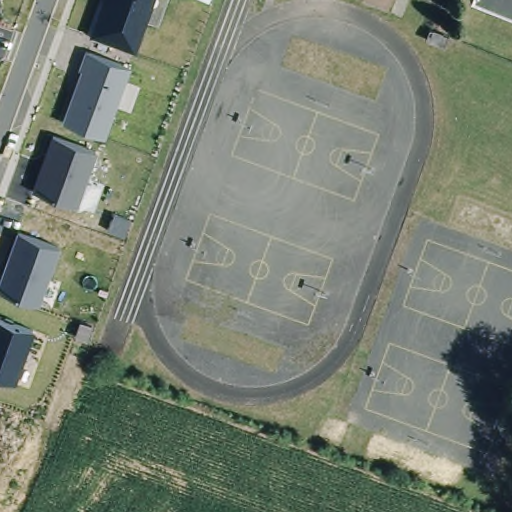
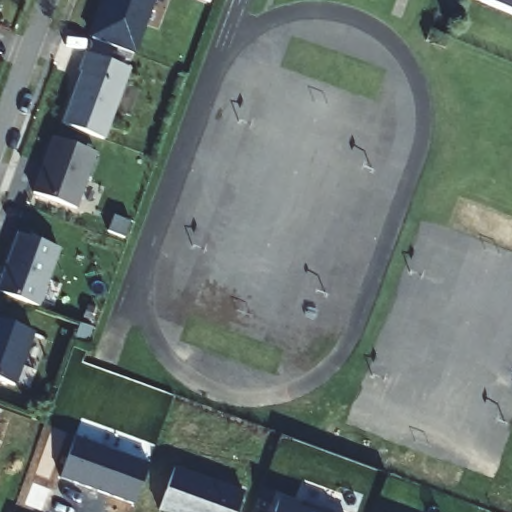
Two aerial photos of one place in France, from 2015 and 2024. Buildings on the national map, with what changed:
unchanged [(98,0),(149,0),(135,50),(86,31),(98,0)]
unchanged [(512,0),(512,12),(481,0),(512,0)]
unchanged [(60,115),(85,51),(125,67),(103,134),(60,115)]
unchanged [(32,184),(52,134),(92,153),(77,201),(32,184)]
unchanged [(0,265),(15,229),(55,247),(37,301),(0,288),(0,265)]
unchanged [(12,384),(0,380),(0,319),(30,332),(12,384)]
new [(74,438),(147,465),(132,506),(58,479),(74,438)]
new [(173,467),(243,493),(236,512),(160,512),(157,511),(173,467)]
new [(278,498),(316,512),(273,512),(278,498)]

